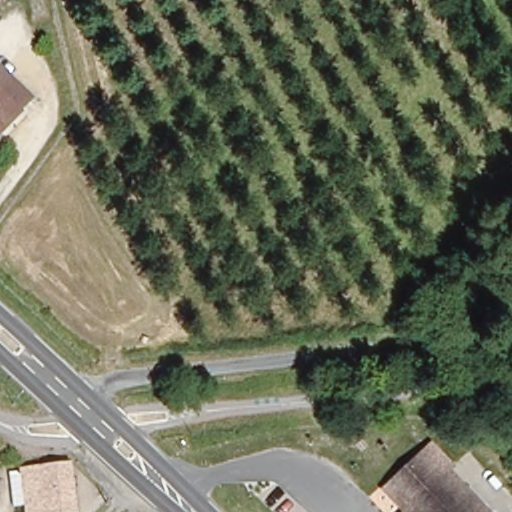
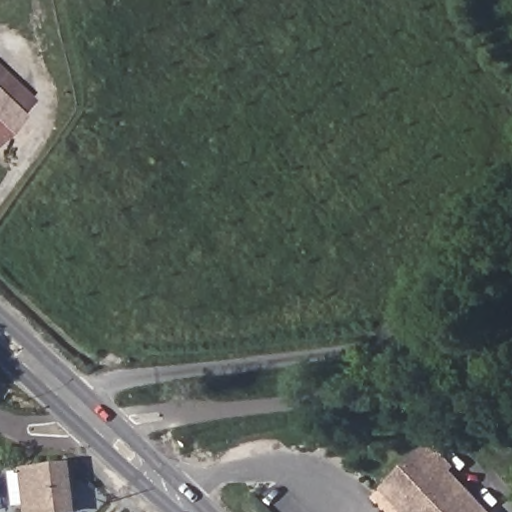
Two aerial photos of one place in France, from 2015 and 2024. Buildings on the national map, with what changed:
unchanged [(33,106),(20,119),(0,98),(0,74),(33,106)]
unchanged [(20,119),(0,139),(0,98),(20,119)]
unchanged [(380,492),(433,445),(492,512),(402,512),(380,492)]
unchanged [(27,510),(14,512),(9,480),(22,478),(69,471),(75,512),(27,512),(27,510)]

